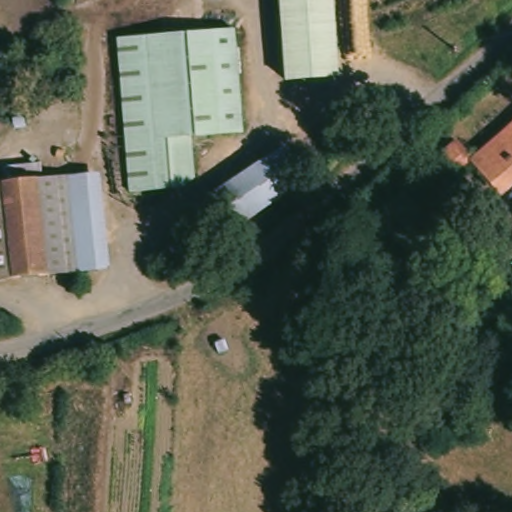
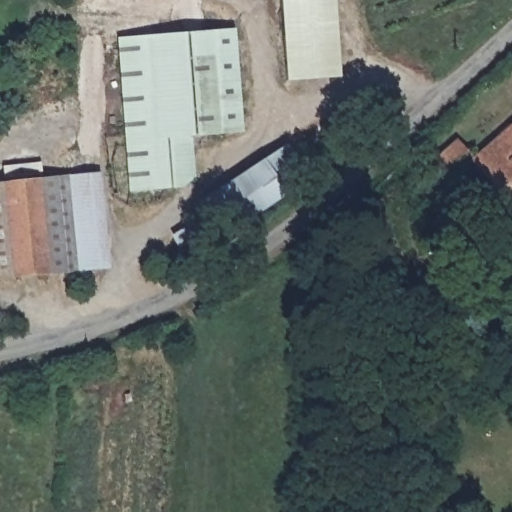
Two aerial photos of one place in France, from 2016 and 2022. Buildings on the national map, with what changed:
unchanged [(294,80),(287,0),(343,0),(345,32),(346,37),(348,66),(348,74),(294,80)]
unchanged [(238,28),(247,129),(199,135),(202,176),(184,186),(139,190),(124,39),(238,28)]
unchanged [(509,192),(496,176),(482,159),(512,133),(512,190),(509,192)]
unchanged [(468,162),(448,180),(434,163),(464,138),(482,159),(473,167),(468,162)]
unchanged [(319,182),(227,242),(202,207),(294,142),(319,182)]
unchanged [(64,168),(93,166),(105,261),(74,265),(74,254),(65,174),(64,168)]
unchanged [(75,283),(0,291),(0,176),(64,168),(65,174),(74,254),(74,265),(75,283)]

